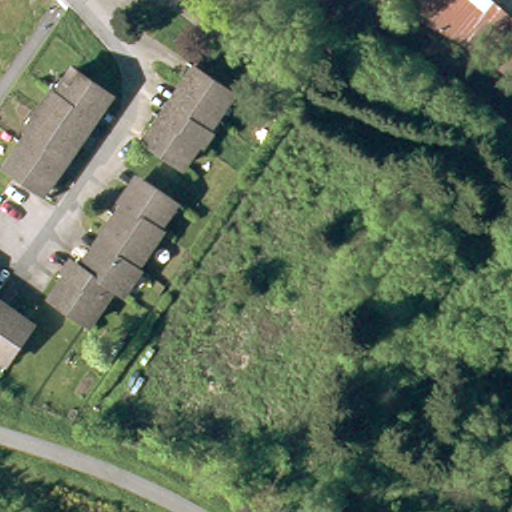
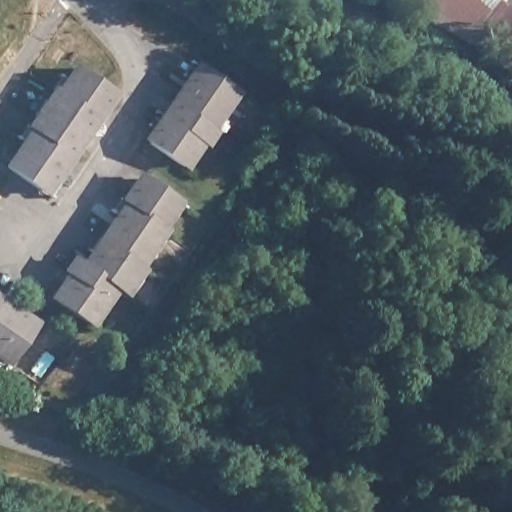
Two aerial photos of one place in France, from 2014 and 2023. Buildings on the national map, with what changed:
unchanged [(389,0),(466,0),(490,20),(495,13),(497,16),(512,29),(512,83),(496,69),(485,61),(466,49),(389,0)]
unchanged [(237,93),(187,167),(155,145),(206,71),(237,93)]
unchanged [(24,184),(9,172),(75,74),(107,96),(40,194),(24,184)]
unchanged [(180,207),(137,270),(141,273),(125,297),(116,291),(92,327),(57,304),(82,268),(91,274),(107,250),(107,246),(122,223),(147,185),(180,207)]
unchanged [(0,362),(0,314),(30,334),(7,367),(0,362)]

